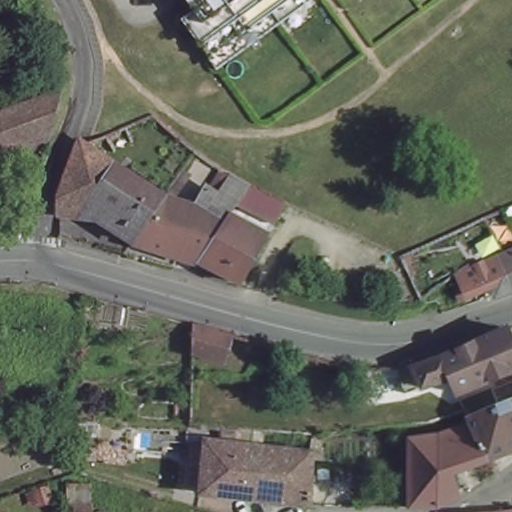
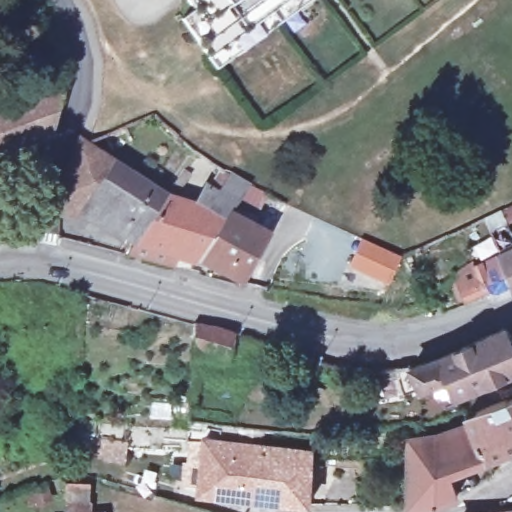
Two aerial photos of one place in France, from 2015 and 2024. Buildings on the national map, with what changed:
unchanged [(214,57),(179,6),(187,0),(293,0),(214,57)]
unchanged [(54,135),(0,145),(0,109),(65,92),(54,135)]
unchanged [(63,196),(80,140),(88,145),(114,159),(142,176),(175,194),(187,200),(202,209),(226,174),(236,180),(177,264),(152,253),(138,247),(63,196)]
unchanged [(252,189),(231,220),(196,272),(177,264),(236,180),(252,189)]
unchanged [(247,229),(266,196),(288,208),(238,291),(196,272),(231,220),(247,229)]
new [(348,270),(362,239),(402,258),(387,287),(348,270)]
unchanged [(474,262),(477,271),(503,258),(512,254),(512,283),(485,292),(482,285),(457,289),(451,271),(474,262)]
unchanged [(231,330),(222,359),(194,353),(192,320),(231,330)]
unchanged [(457,397),(456,395),(444,396),(426,397),(410,399),(406,372),(415,370),(421,368),(423,368),(433,364),(475,345),(512,327),(512,404),(465,422),(463,416),(457,397)]
unchanged [(512,404),(512,451),(477,464),(467,431),(465,422),(512,404)]
unchanged [(477,464),(445,476),(453,500),(448,503),(433,511),(406,511),(407,465),(407,441),(432,442),(467,431),(477,464)]
unchanged [(202,435),(200,449),(183,447),(184,432),(202,435)]
unchanged [(324,465),(310,463),(312,441),(327,443),(324,465)]
unchanged [(125,450),(123,465),(101,460),(92,458),(94,445),(125,450)]
unchanged [(310,463),(306,510),(286,507),(195,495),(200,449),(310,463)]
unchanged [(116,512),(75,512),(116,511),(116,512)]
unchanged [(507,512),(512,511),(512,512),(507,512)]

